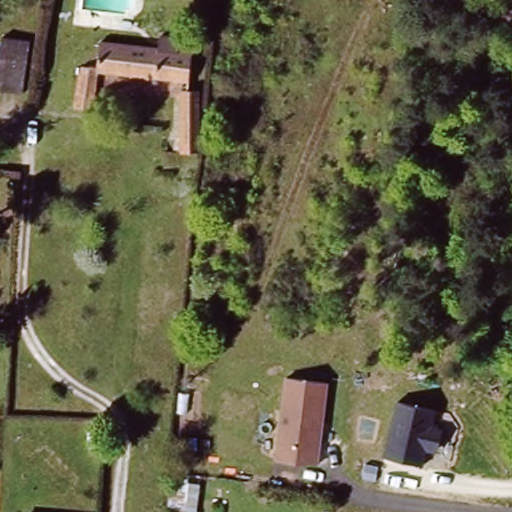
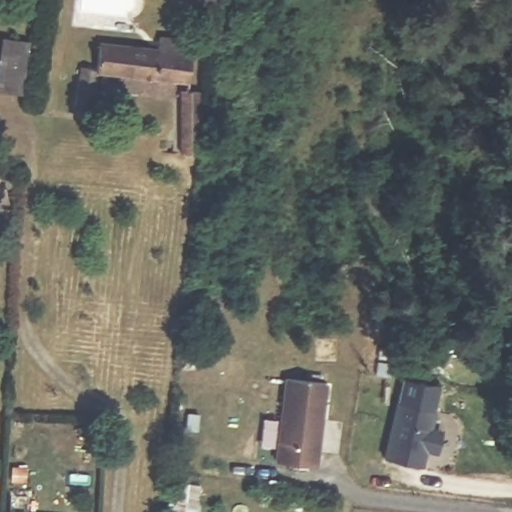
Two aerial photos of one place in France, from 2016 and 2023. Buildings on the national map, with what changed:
unchanged [(99,60),(101,39),(159,45),(161,29),(181,30),(179,48),(192,49),(188,80),(98,71),(94,107),(74,104),(79,58),(99,60)]
unchanged [(30,35),(22,91),(0,88),(0,44),(2,31),(30,35)]
unchanged [(200,85),(203,149),(182,150),(179,86),(200,85)]
unchanged [(284,377),(330,383),(319,464),(274,458),(284,377)]
unchanged [(397,399),(436,409),(433,427),(444,429),(439,453),(427,451),(423,467),(383,454),(397,399)]

